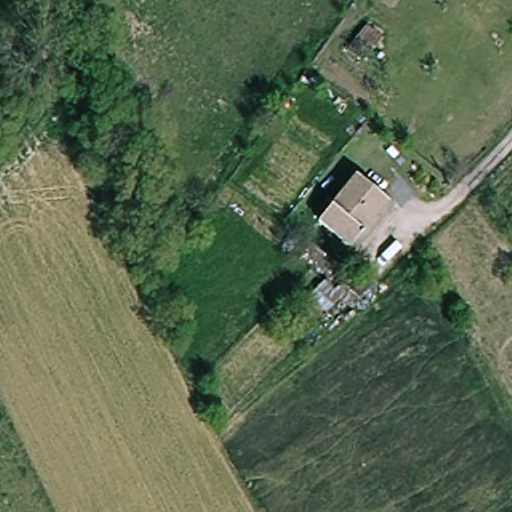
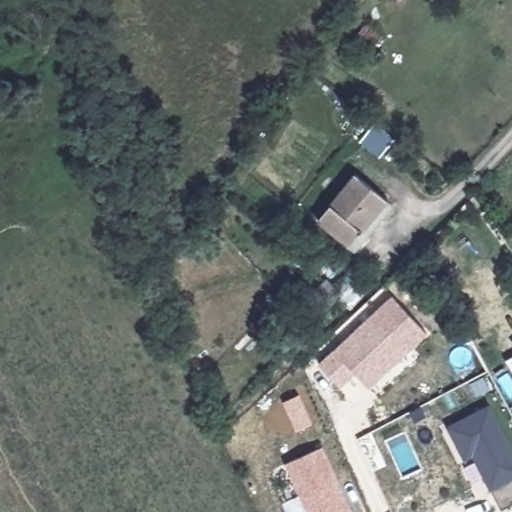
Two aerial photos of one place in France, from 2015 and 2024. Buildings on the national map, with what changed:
unchanged [(366,24),(383,36),(375,46),(359,34),(366,24)]
unchanged [(361,179),(392,205),(355,249),(323,222),(361,179)]
new [(359,373),(344,388),(323,367),(394,296),(430,331),(391,370),(373,387),(359,373)]
new [(512,449),(512,506),(502,511),(492,491),(491,491),(473,456),(464,460),(447,428),(489,405),(512,449)]
new [(348,512),(293,512),(288,501),(302,495),(287,463),(322,447),(352,510),(348,512)]

